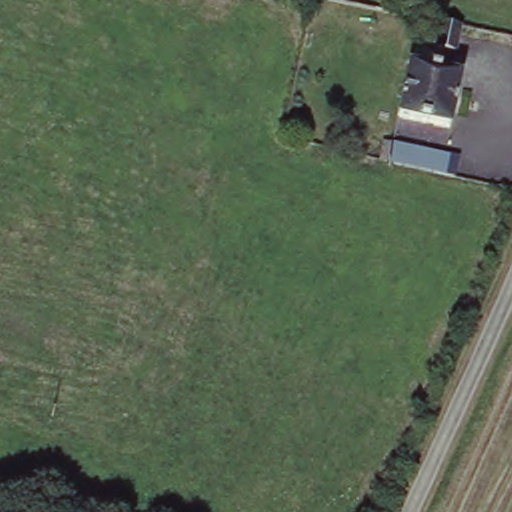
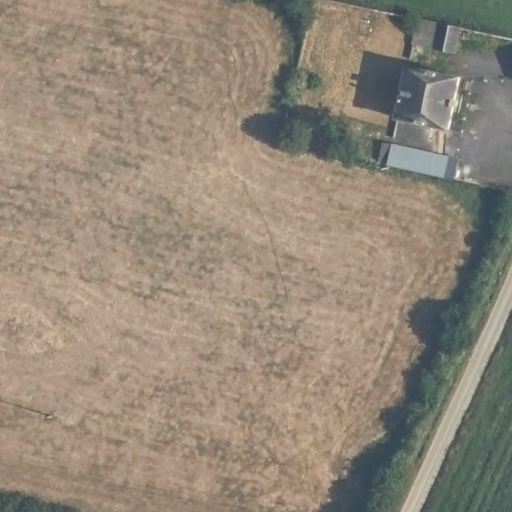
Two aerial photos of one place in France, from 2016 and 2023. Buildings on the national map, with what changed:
unchanged [(470,26),(464,54),(418,45),(423,17),(470,26)]
unchanged [(462,74),(452,126),(400,115),(410,64),(462,74)]
unchanged [(380,168),(386,141),(461,155),(455,182),(380,168)]

